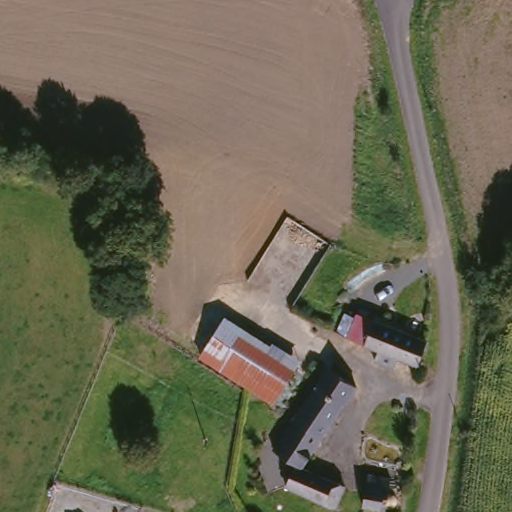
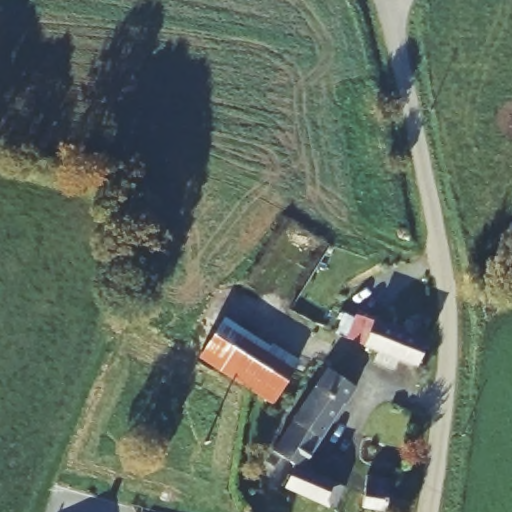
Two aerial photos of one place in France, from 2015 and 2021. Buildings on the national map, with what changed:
unchanged [(358,341),(365,317),(421,330),(414,357),(358,341)]
unchanged [(293,366),(274,398),(272,401),(260,394),(196,357),(221,320),(293,366)]
unchanged [(329,372),(354,387),(299,466),(274,447),(299,413),(317,388),(329,372)]
unchanged [(299,466),(346,486),(338,510),(288,493),(299,466)]
unchanged [(364,501),(362,501),(373,477),(395,485),(397,492),(387,511),(364,501)]

